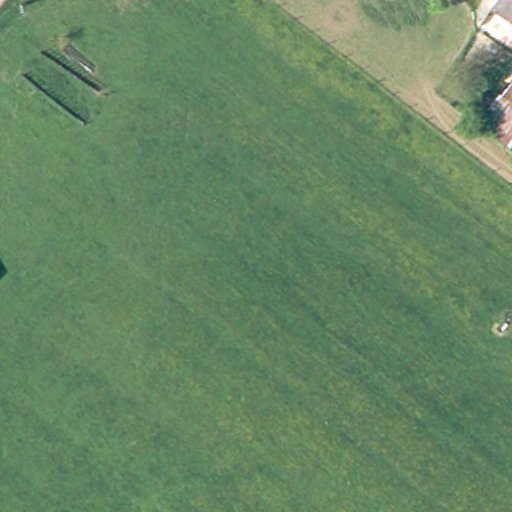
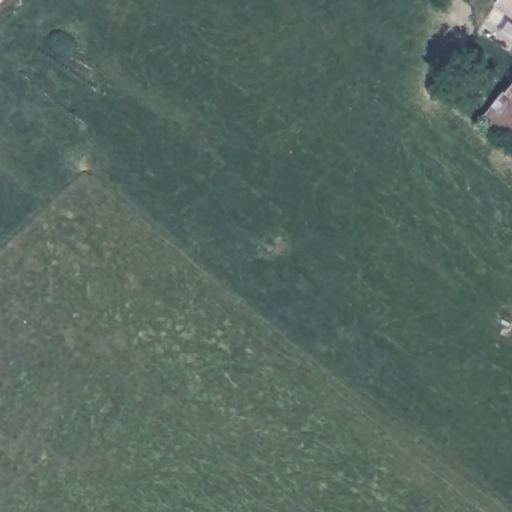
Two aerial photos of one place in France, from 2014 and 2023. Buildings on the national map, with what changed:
unchanged [(502,0),(512,0),(512,7),(502,0)]
unchanged [(508,138),(480,114),(512,75),(512,133),(508,138)]

